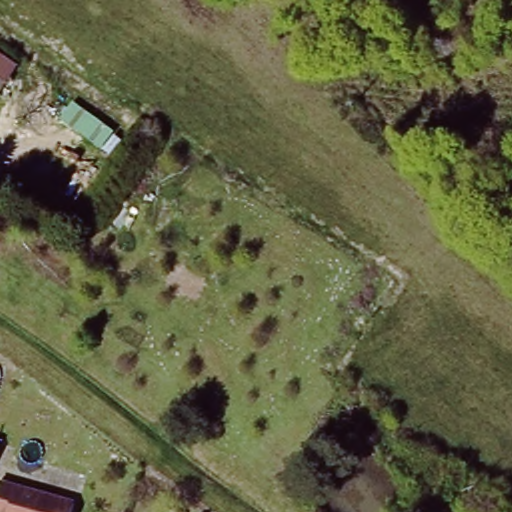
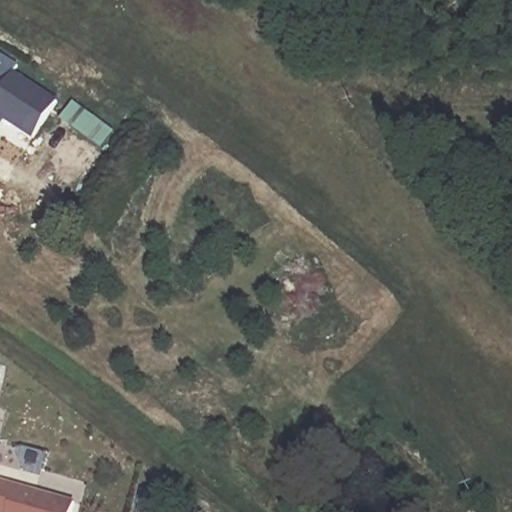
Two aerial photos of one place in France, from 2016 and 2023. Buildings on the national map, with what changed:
unchanged [(14,61),(0,84),(0,53),(14,61)]
new [(34,141),(0,121),(0,83),(9,69),(59,101),(34,141)]
unchanged [(4,480),(74,500),(70,512),(0,512),(0,492),(4,480)]

